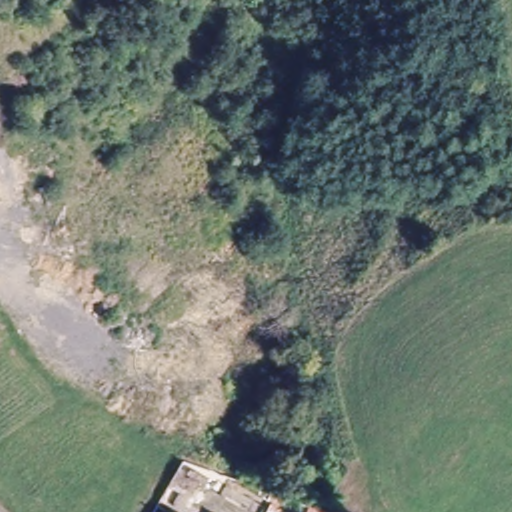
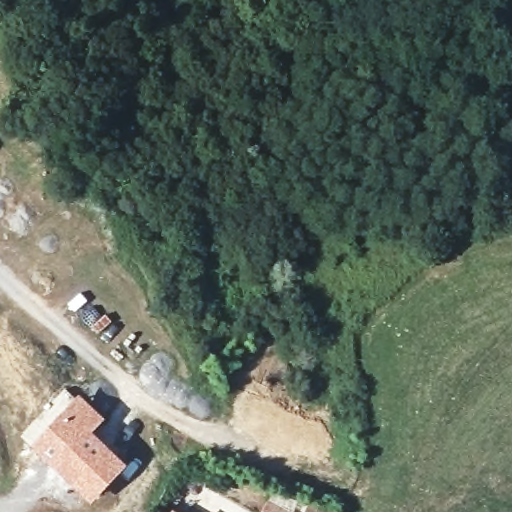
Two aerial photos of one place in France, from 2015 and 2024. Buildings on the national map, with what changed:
new [(63,393),(68,398),(66,400),(69,402),(78,394),(104,420),(93,433),(127,466),(90,505),(47,465),(20,437),(63,393)]
unchanged [(178,512),(170,512),(173,508),(178,512)]
unchanged [(214,512),(213,512),(213,511),(214,512)]

